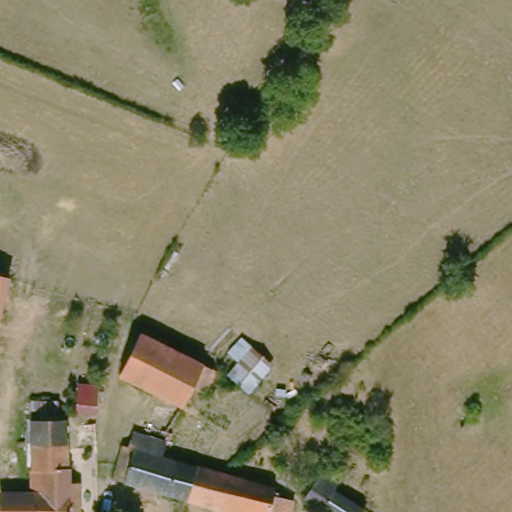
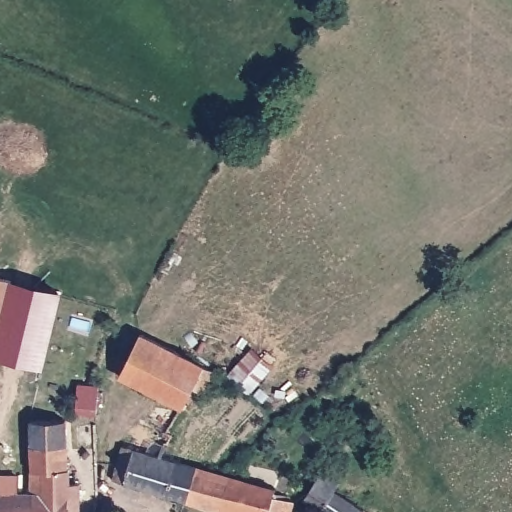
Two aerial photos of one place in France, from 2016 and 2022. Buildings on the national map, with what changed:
unchanged [(0,274),(8,277),(0,315),(0,274)]
unchanged [(165,283),(150,307),(138,302),(155,275),(165,283)]
new [(0,315),(8,277),(59,289),(40,363),(0,357),(0,315)]
unchanged [(147,333),(220,374),(209,394),(196,387),(184,407),(123,373),(147,333)]
unchanged [(280,363),(275,375),(293,388),(280,408),(223,369),(241,337),(280,363)]
unchanged [(96,419),(77,417),(80,387),(99,388),(96,419)]
unchanged [(32,423),(32,402),(58,402),(59,422),(70,422),(71,484),(82,484),(82,512),(33,512),(33,494),(32,423)]
unchanged [(197,507),(121,488),(130,451),(138,453),(143,438),(157,440),(160,434),(180,439),(175,463),(205,471),(197,507)]
unchanged [(289,477),(286,491),(284,500),(303,506),(302,512),(215,512),(197,507),(205,471),(231,477),(256,483),(259,470),(289,477)]
unchanged [(336,496),(362,512),(313,512),(305,507),(325,475),(342,485),(336,496)]
unchanged [(1,512),(2,495),(33,494),(33,512),(1,512)]

